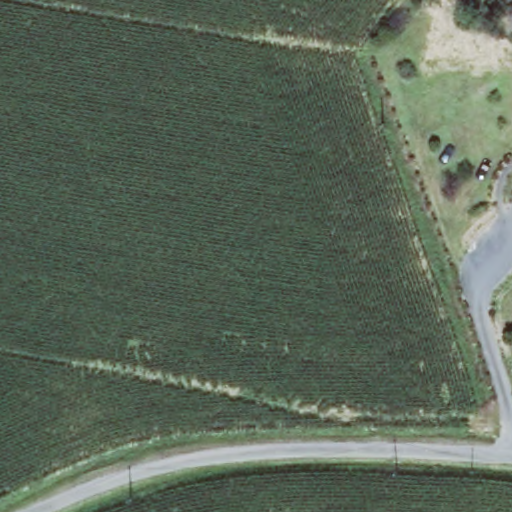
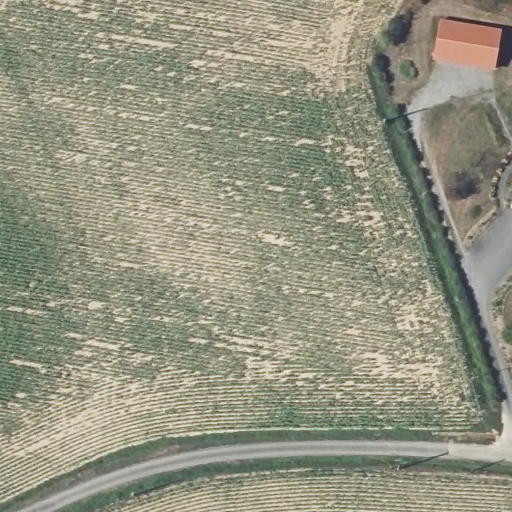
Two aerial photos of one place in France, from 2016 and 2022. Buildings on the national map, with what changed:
new [(441,19),(501,31),(493,71),(432,59),(441,19)]

